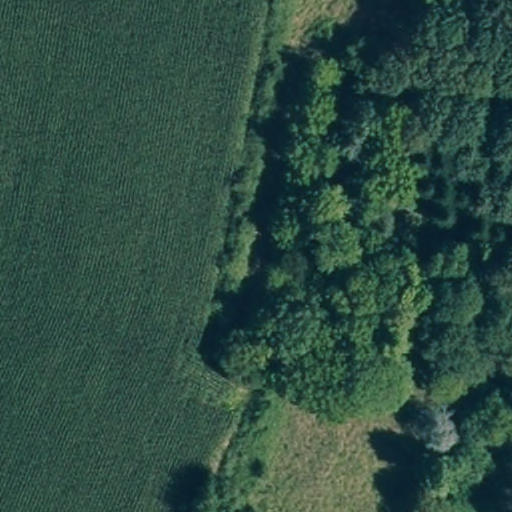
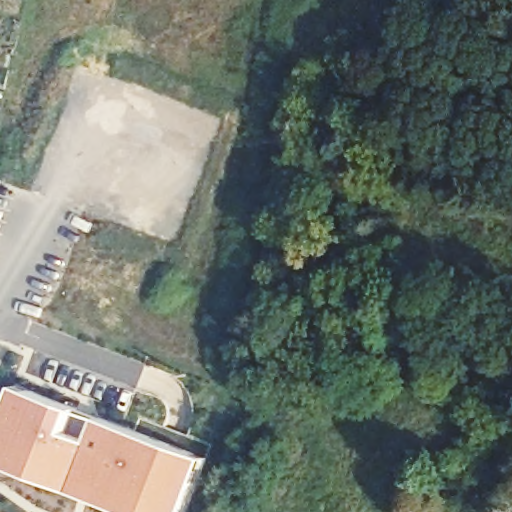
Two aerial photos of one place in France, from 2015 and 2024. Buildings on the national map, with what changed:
new [(207,461),(187,512),(115,512),(0,467),(0,421),(13,387),(207,461)]

